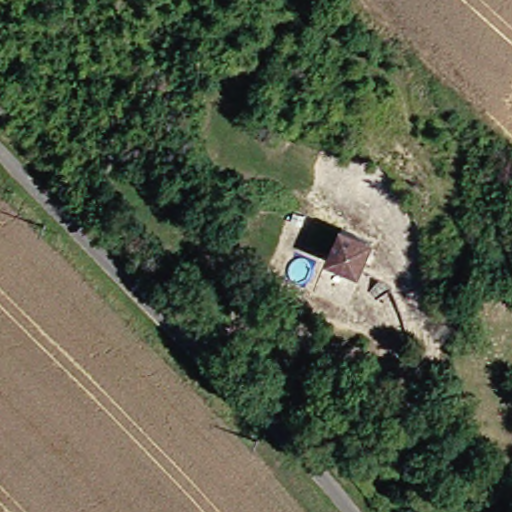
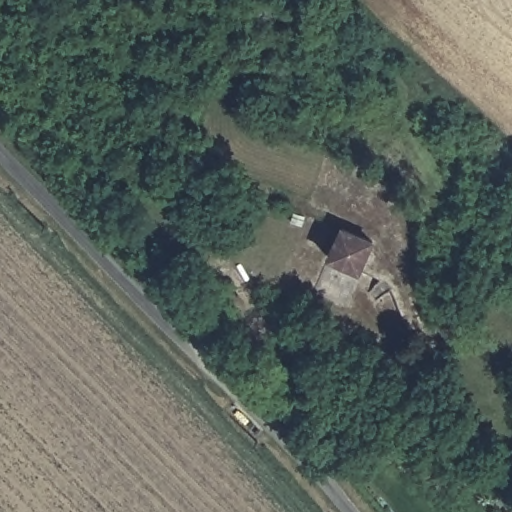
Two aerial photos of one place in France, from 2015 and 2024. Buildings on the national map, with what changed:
unchanged [(386,242),(370,277),(343,263),(358,229),(386,242)]

